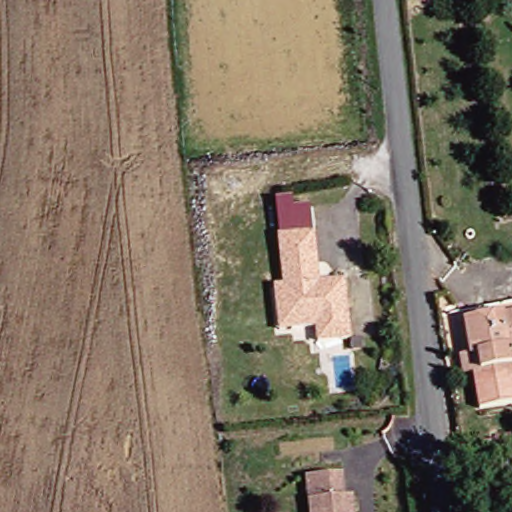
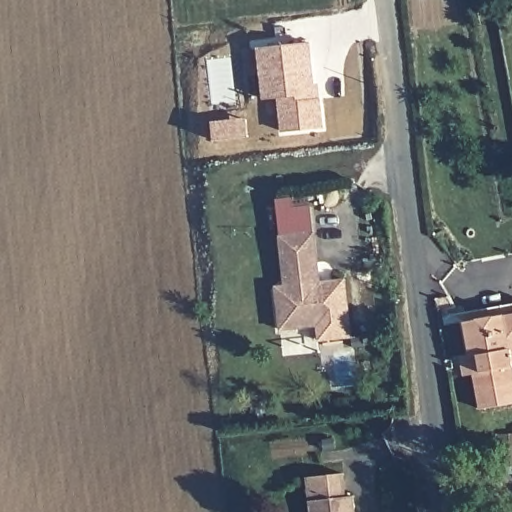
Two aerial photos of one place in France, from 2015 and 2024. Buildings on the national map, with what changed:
new [(315,83),(320,83),(326,127),(281,133),(277,97),(262,99),(257,48),(311,41),(315,83)]
new [(247,137),(212,140),(211,121),(247,116),(247,137)]
new [(273,199),(308,194),(313,234),(310,232),(277,236),(273,199)]
unchanged [(310,232),(318,284),(341,282),(347,335),(313,340),(310,327),(278,330),(275,300),(286,298),(277,236),(310,232)]
unchanged [(458,352),(469,350),(462,322),(512,312),(512,404),(482,410),(472,368),(462,370),(458,352)]
unchanged [(221,415),(246,410),(247,390),(267,391),(272,427),(224,433),(221,415)]
new [(512,434),(512,474),(509,474),(506,435),(512,434)]
unchanged [(345,499),(351,499),(353,512),(305,512),(302,478),(338,475),(345,499)]

